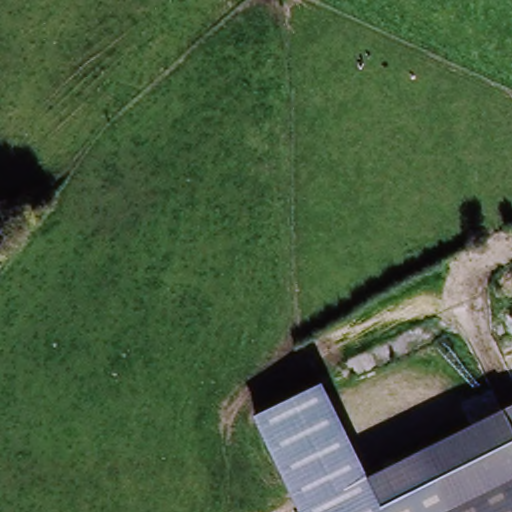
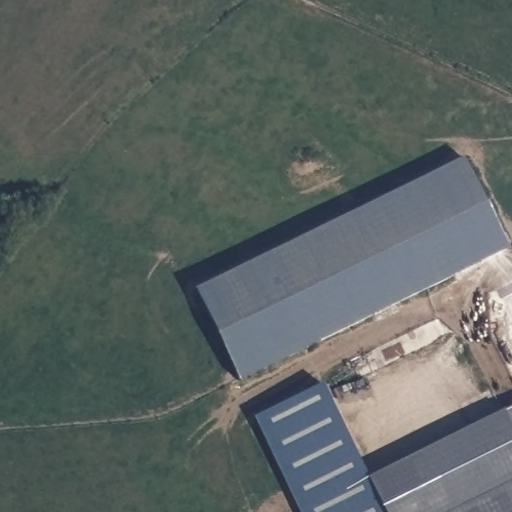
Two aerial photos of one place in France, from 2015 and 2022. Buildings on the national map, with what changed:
new [(294,239),(467,156),(503,233),(422,272),(307,344),(293,350),(294,239)]
new [(422,272),(503,233),(510,246),(307,344),(422,272)]
new [(294,239),(293,350),(238,377),(195,286),(294,239)]
unchanged [(322,384),(370,479),(428,453),(453,506),(512,478),(512,512),(294,512),(251,421),(322,384)]
unchanged [(512,478),(453,506),(428,453),(512,412),(512,478)]

